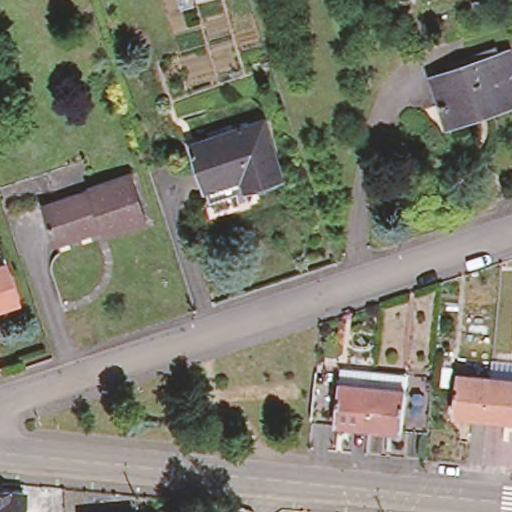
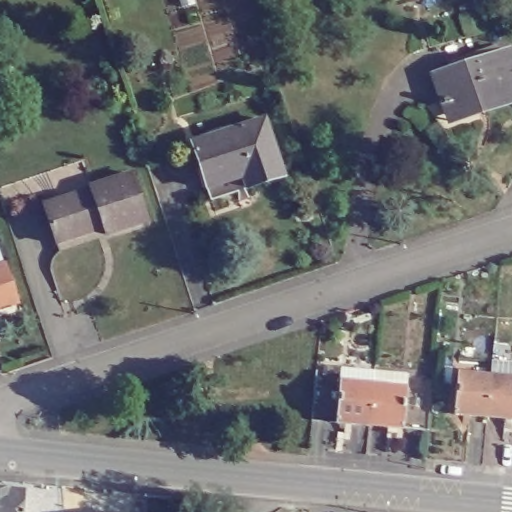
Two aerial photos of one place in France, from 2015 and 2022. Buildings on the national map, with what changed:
unchanged [(512,77),(512,99),(480,109),(477,102),(443,113),(430,74),(502,49),(512,77)]
unchanged [(279,170),(207,193),(188,135),(260,112),(279,170)]
unchanged [(142,215),(101,228),(98,217),(89,220),(90,225),(53,237),(40,197),(86,183),(85,178),(126,166),(142,215)]
unchanged [(1,256),(13,297),(0,301),(0,257),(1,256)]
unchanged [(485,415),(453,413),(456,373),(489,376),(490,361),(512,364),(512,426),(502,425),(503,417),(485,415)]
unchanged [(371,429),(340,426),(314,423),(317,384),(317,375),(327,375),(327,365),(344,366),(343,371),(376,374),(410,378),(409,393),(435,396),(431,435),(405,433),(371,429)]
unchanged [(19,483),(17,512),(0,512),(0,482),(19,483)]

